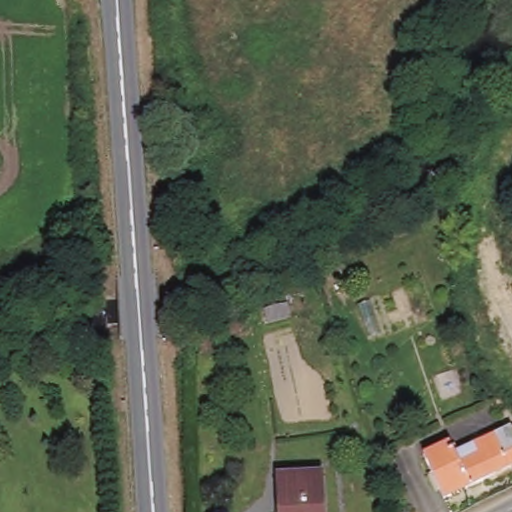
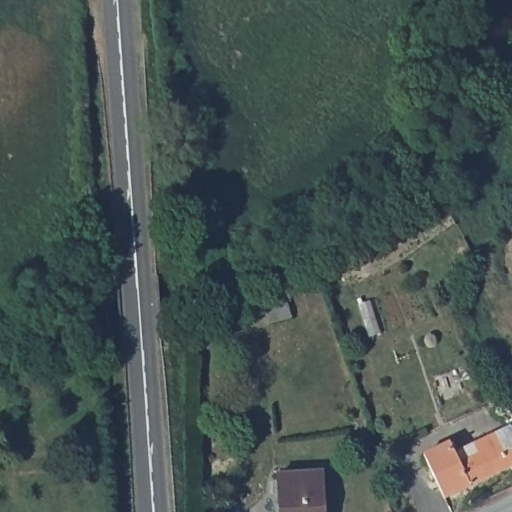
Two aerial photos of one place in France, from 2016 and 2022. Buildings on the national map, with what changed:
unchanged [(292,307),(293,320),(268,325),(267,312),(292,307)]
unchanged [(425,456),(451,445),(456,455),(512,430),(512,470),(446,501),(425,456)]
unchanged [(322,512),(275,512),(274,476),(321,474),(322,512)]

